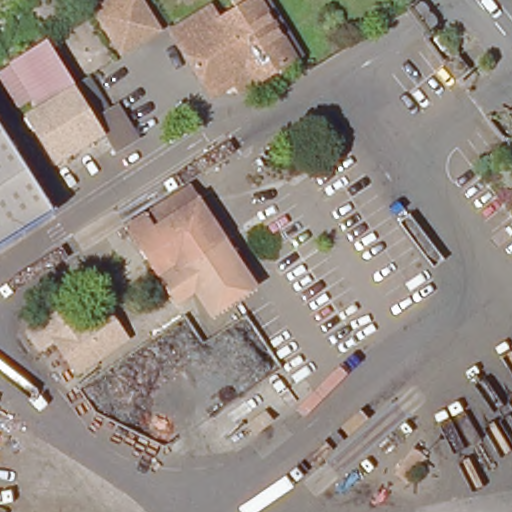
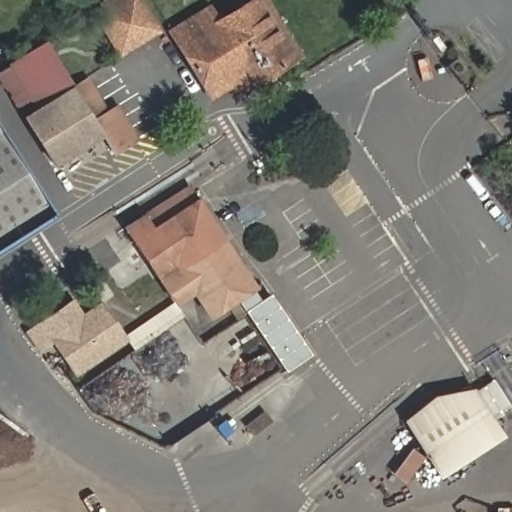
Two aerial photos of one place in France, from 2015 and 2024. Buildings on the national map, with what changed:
unchanged [(110,0),(148,0),(162,26),(118,51),(94,9),(110,0)]
unchanged [(212,0),(213,0),(219,10),(236,0),(265,0),(302,61),(240,96),(235,85),(208,97),(166,25),(212,0)]
unchanged [(465,48),(460,39),(471,33),(477,40),(465,48)]
unchanged [(88,74),(108,106),(115,101),(137,138),(114,151),(102,134),(51,165),(19,116),(21,113),(0,83),(0,68),(8,63),(7,61),(44,38),(71,85),(88,74)]
unchanged [(0,132),(47,209),(0,239),(0,132)]
unchanged [(209,316),(191,292),(174,304),(120,225),(143,211),(145,216),(188,186),(195,197),(197,199),(255,287),(209,316)]
unchanged [(71,374),(48,341),(37,349),(23,330),(64,303),(74,318),(98,300),(125,339),(71,374)]
new [(434,395),(473,388),(474,390),(493,380),(509,405),(491,416),(505,436),(439,478),(403,421),(434,395)]
new [(415,448),(428,459),(409,485),(396,474),(415,448)]

